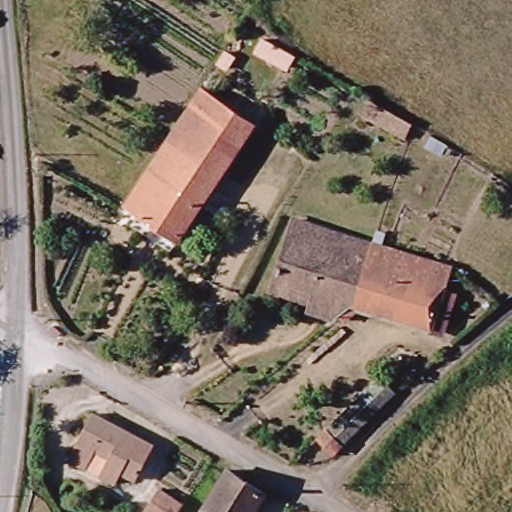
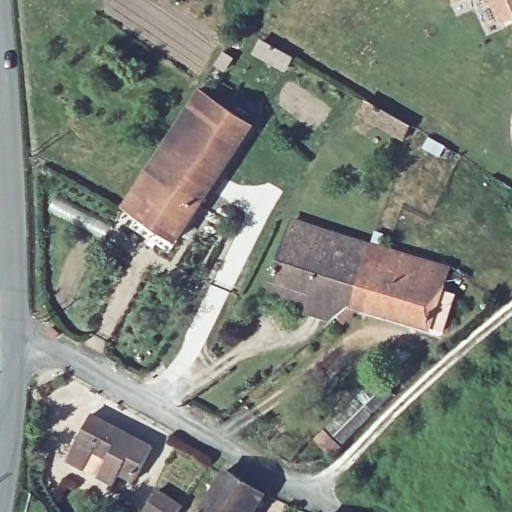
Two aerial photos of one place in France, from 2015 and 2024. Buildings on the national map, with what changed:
new [(457,3),(456,0),(464,0),(457,3)]
new [(512,19),(501,24),(490,0),(512,0),(512,19)]
unchanged [(300,62),(291,74),(264,57),(270,45),(300,62)]
unchanged [(195,88),(250,124),(174,239),(120,205),(195,88)]
unchanged [(373,110),(418,136),(406,146),(365,121),(373,110)]
unchanged [(308,303),(312,287),(275,274),(292,221),(370,243),(353,300),(335,315),(308,303)]
unchanged [(431,321),(353,300),(370,243),(447,264),(431,321)]
unchanged [(376,376),(392,392),(334,454),(316,435),(376,376)]
unchanged [(64,460),(88,415),(149,446),(131,481),(117,473),(110,484),(95,476),(80,469),(64,460)]
unchanged [(254,512),(196,512),(224,469),(265,496),(254,512)]
unchanged [(181,508),(179,512),(145,512),(158,493),(181,508)]

